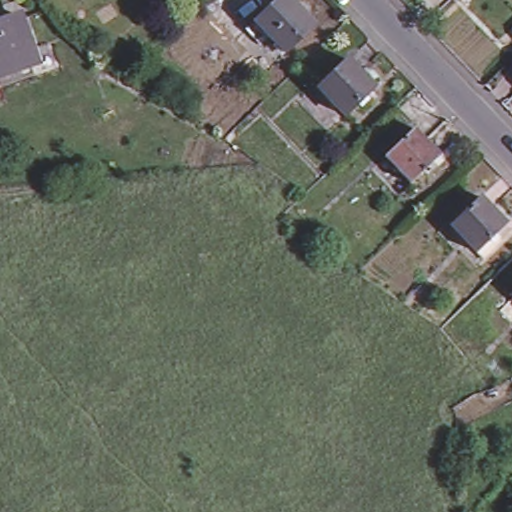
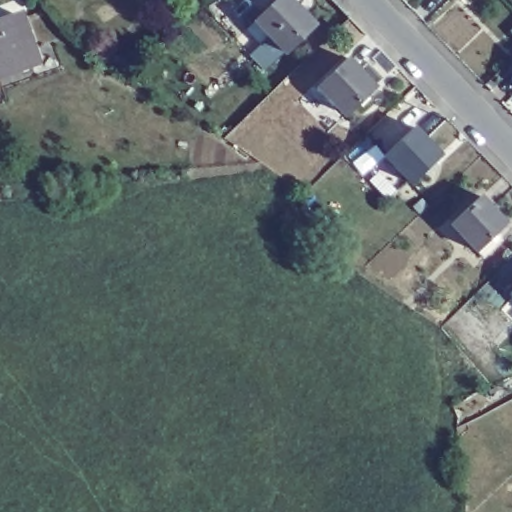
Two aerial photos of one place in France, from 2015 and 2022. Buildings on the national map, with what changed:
unchanged [(308,21),(280,49),(250,16),(267,0),(288,0),(308,21)]
unchanged [(29,57),(0,66),(0,14),(13,10),(29,57)]
unchanged [(370,83),(341,111),(315,83),(341,55),(370,83)]
unchanged [(433,150),(405,178),(380,152),(408,125),(433,150)]
unchanged [(503,220),(473,248),(446,220),(476,191),(503,220)]

